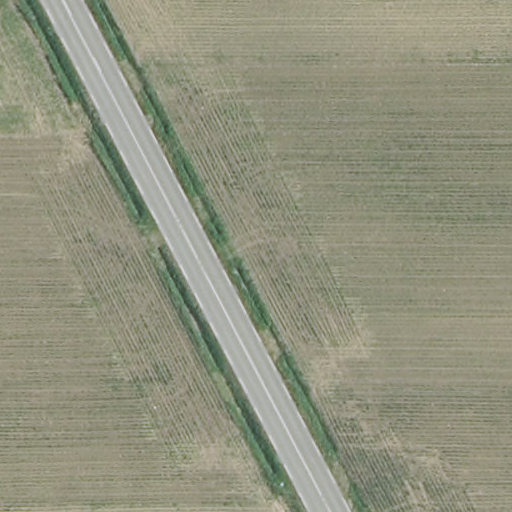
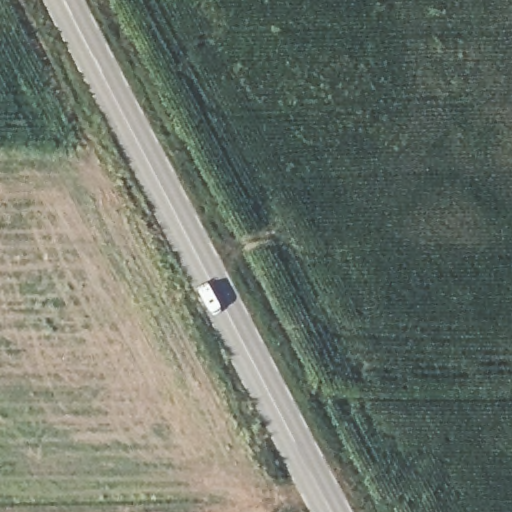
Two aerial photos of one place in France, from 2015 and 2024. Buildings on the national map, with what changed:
[]

